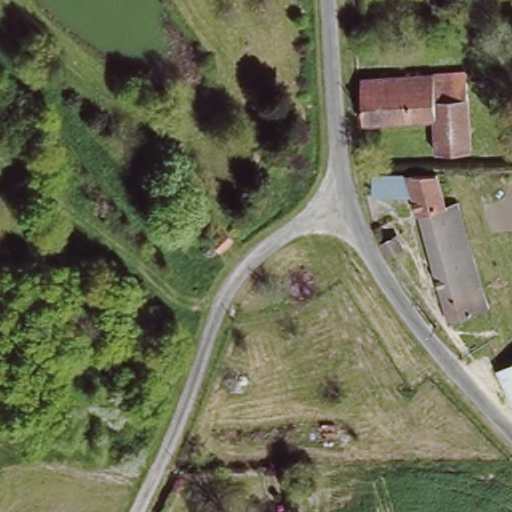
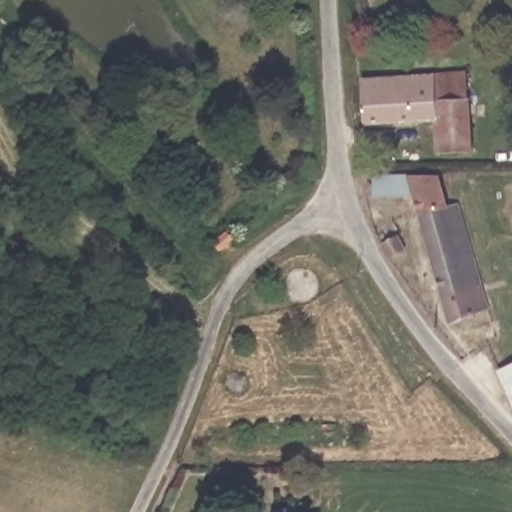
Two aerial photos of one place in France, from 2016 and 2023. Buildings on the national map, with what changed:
unchanged [(476,146),(442,148),(440,110),(370,114),(367,73),(417,69),(437,69),(472,66),(476,146)]
unchanged [(452,204),(485,310),(447,322),(407,201),(371,200),(369,176),(399,175),(429,174),(439,208),(452,204)]
unchanged [(386,247),(398,239),(407,252),(395,260),(386,247)]
unchanged [(502,367),(512,362),(512,390),(502,367)]

